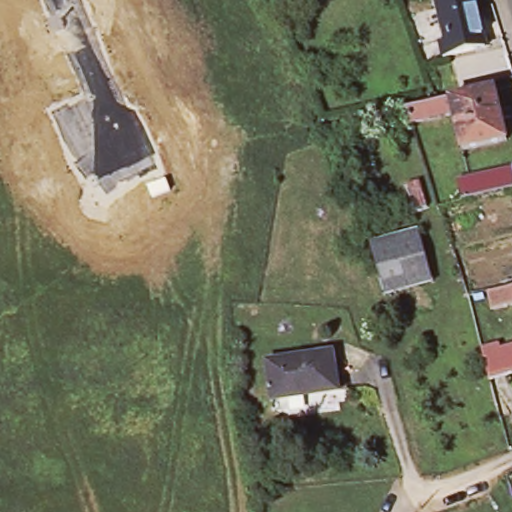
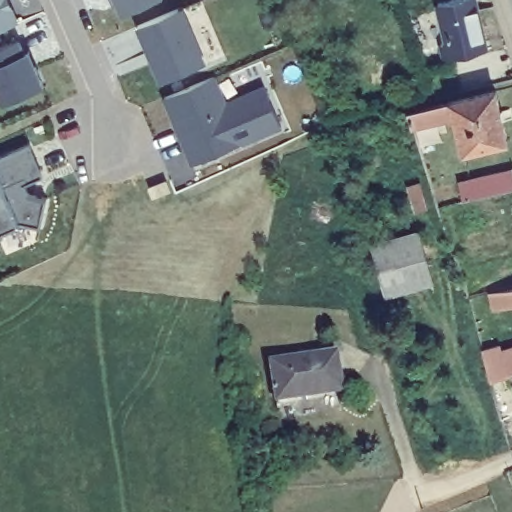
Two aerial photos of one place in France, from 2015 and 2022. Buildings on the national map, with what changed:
new [(0,29),(0,0),(11,0),(20,20),(0,29)]
new [(118,3),(114,5),(112,0),(152,0),(122,13),(118,3)]
unchanged [(438,0),(474,0),(485,45),(445,54),(440,38),(447,36),(438,0)]
new [(207,61),(160,81),(137,25),(185,5),(207,61)]
new [(30,53),(35,68),(44,88),(4,105),(0,96),(0,49),(19,41),(25,55),(30,53)]
new [(163,98),(213,78),(225,105),(264,89),(280,128),(192,166),(180,139),(175,127),(163,98)]
unchanged [(408,108),(495,87),(508,136),(463,147),(453,111),(413,122),(408,108)]
new [(25,183),(27,195),(47,197),(40,226),(20,221),(0,230),(0,155),(30,141),(44,175),(25,183)]
unchanged [(372,157),(377,171),(363,175),(360,161),(372,157)]
unchanged [(459,182),(512,168),(512,190),(464,202),(459,182)]
unchanged [(422,184),(429,209),(416,214),(408,187),(422,184)]
unchanged [(415,230),(430,281),(382,295),(367,244),(415,230)]
unchanged [(496,305),(492,288),(512,284),(512,302),(496,305)]
unchanged [(510,370),(492,375),(483,344),(502,340),(506,355),(512,353),(512,369),(510,370)]
unchanged [(330,349),(335,388),(272,398),(266,360),(330,349)]

